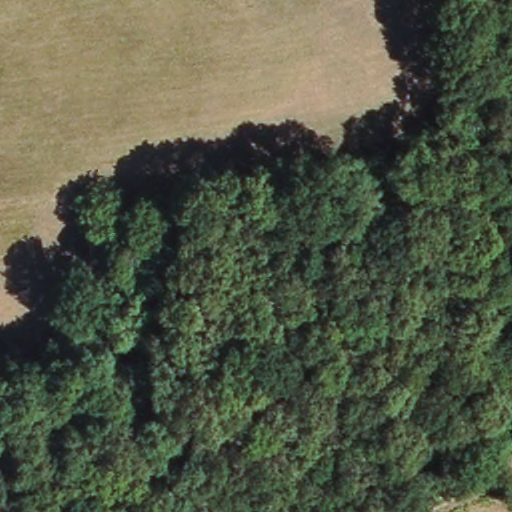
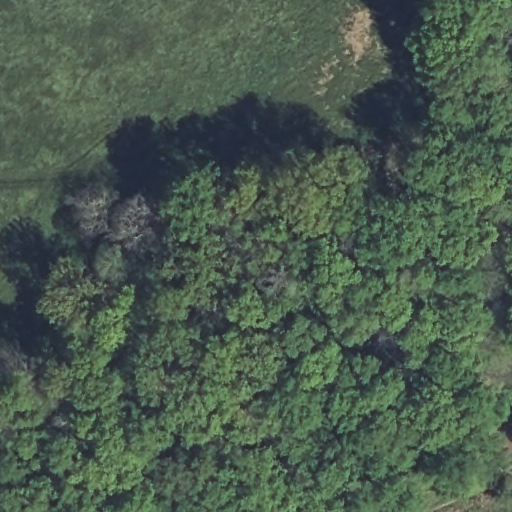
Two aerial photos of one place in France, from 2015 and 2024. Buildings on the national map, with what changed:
[]

